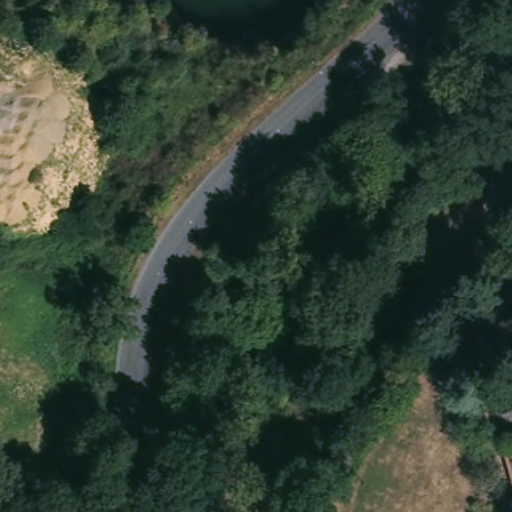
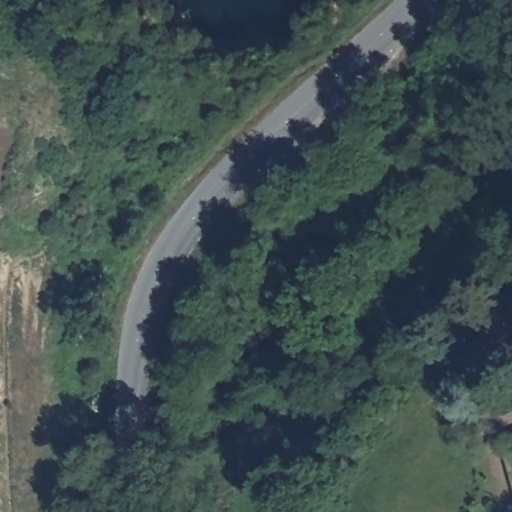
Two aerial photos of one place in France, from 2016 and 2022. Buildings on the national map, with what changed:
unchanged [(111,267),(104,278),(92,271),(100,258),(111,267)]

